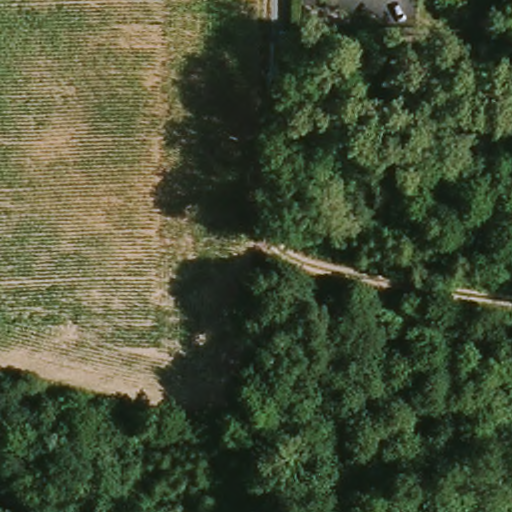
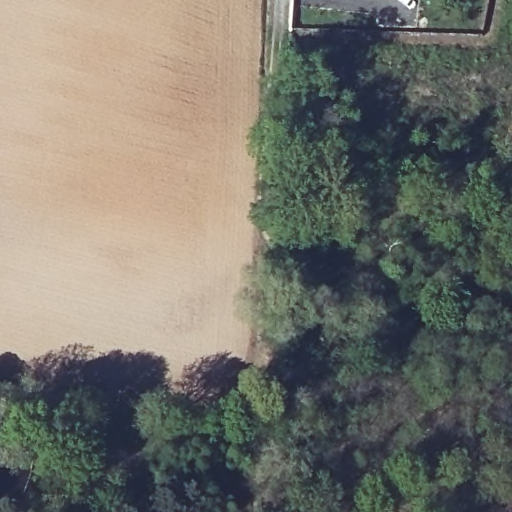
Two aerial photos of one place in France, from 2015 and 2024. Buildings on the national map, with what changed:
[]

